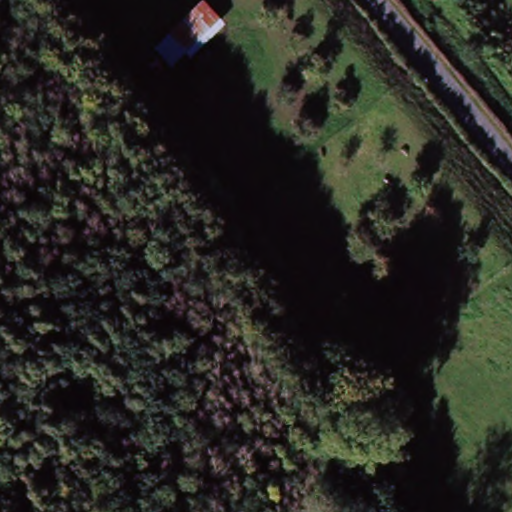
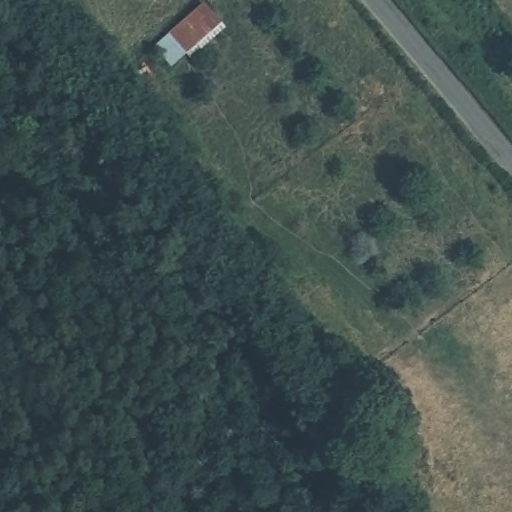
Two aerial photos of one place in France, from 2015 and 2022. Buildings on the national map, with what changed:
unchanged [(149,47),(166,35),(203,4),(225,30),(189,59),(186,56),(168,71),(149,47)]

